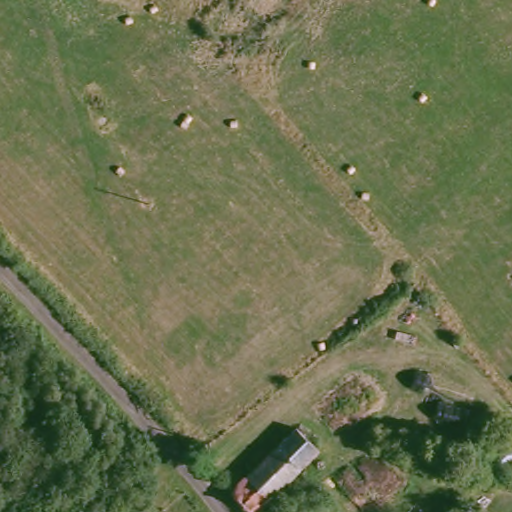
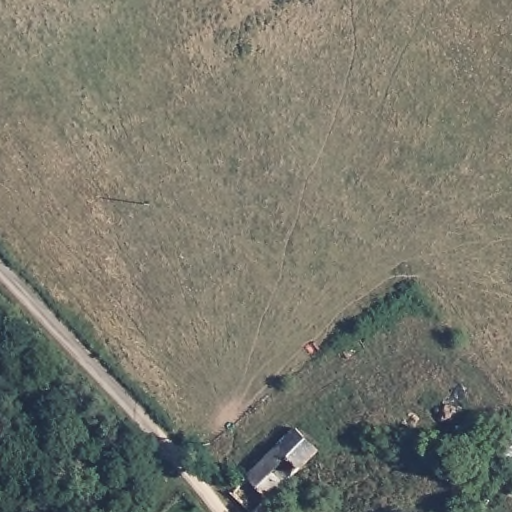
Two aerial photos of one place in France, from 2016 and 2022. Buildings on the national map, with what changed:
unchanged [(298,427),(315,450),(245,512),(243,512),(227,486),(298,427)]

